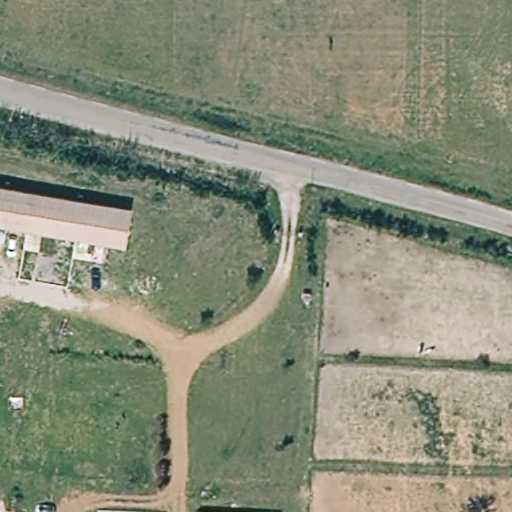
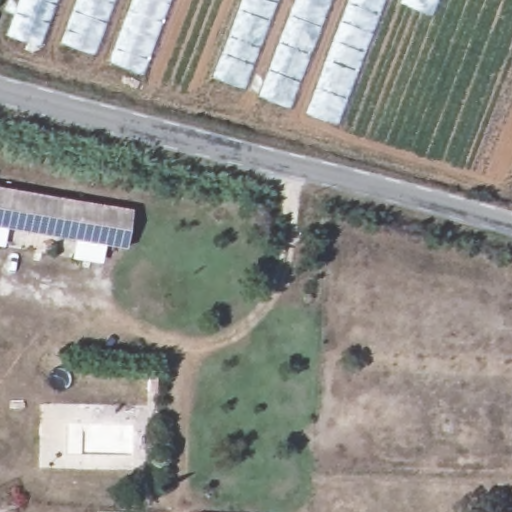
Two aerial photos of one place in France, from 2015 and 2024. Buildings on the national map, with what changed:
new [(6,35),(19,0),(56,0),(39,47),(6,35)]
new [(61,42),(76,0),(115,0),(95,54),(61,42)]
new [(107,61),(130,0),(171,0),(143,74),(107,61)]
new [(212,75),(240,0),(277,0),(243,88),(212,75)]
new [(258,96),(294,0),(331,0),(290,108),(258,96)]
new [(305,113),(348,0),(384,0),(337,124),(305,113)]
new [(400,2),(400,0),(436,0),(431,14),(400,2)]
unchanged [(127,244),(0,224),(0,188),(133,208),(127,244)]

